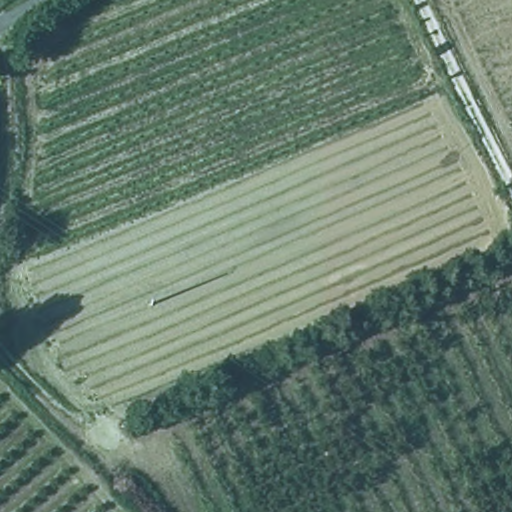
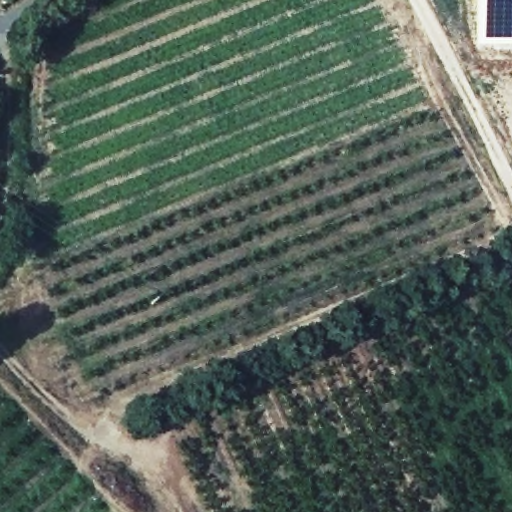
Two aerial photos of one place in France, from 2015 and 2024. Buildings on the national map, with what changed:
new [(482,41),(481,0),(512,0),(512,41),(482,41)]

